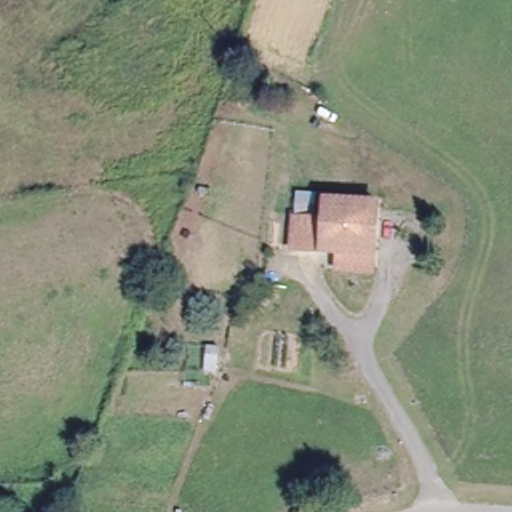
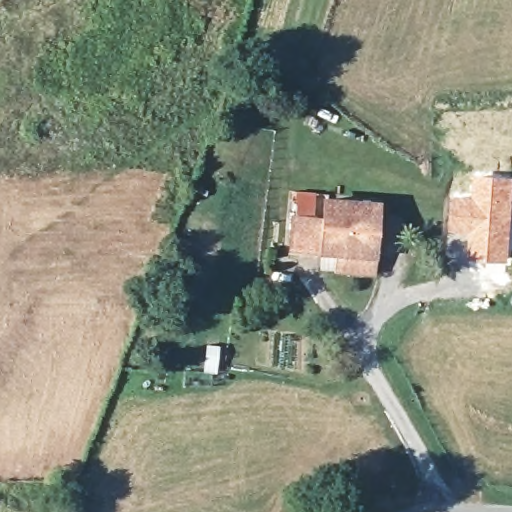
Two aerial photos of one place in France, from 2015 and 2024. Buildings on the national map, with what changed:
new [(451,195),(472,194),(473,172),(512,175),(512,248),(511,247),(510,258),(468,259),(468,234),(450,233),(451,195)]
unchanged [(337,271),(338,251),(294,250),(295,215),(325,216),(326,199),(380,202),(378,252),(376,273),(337,271)]

